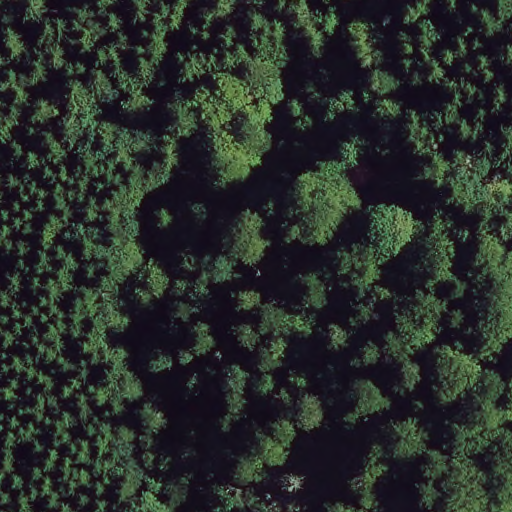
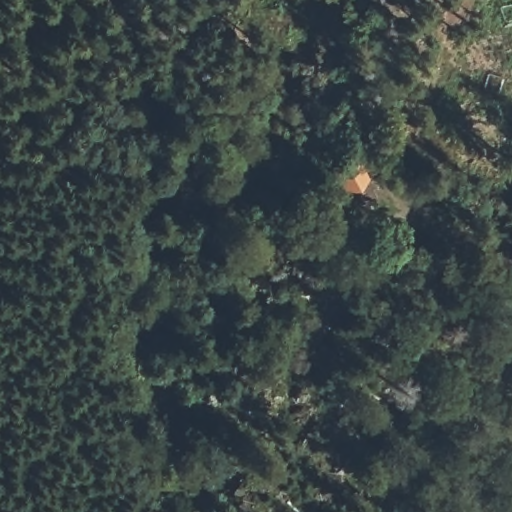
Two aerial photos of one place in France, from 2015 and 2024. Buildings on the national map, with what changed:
unchanged [(344,200),(340,190),(332,168),(352,158),(365,186),(357,191),(344,200)]

